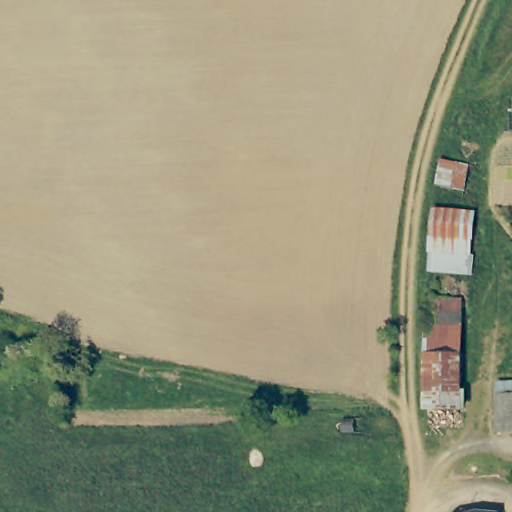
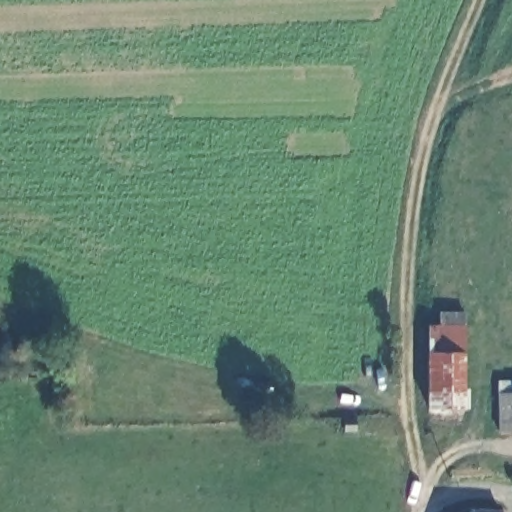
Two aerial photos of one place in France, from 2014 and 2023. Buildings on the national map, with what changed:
demolished [(470,275),(428,272),(431,209),(473,211),(470,275)]
unchanged [(428,299),(463,299),(463,427),(428,427),(428,299)]
unchanged [(491,399),(491,387),(512,387),(512,437),(493,437),(491,399)]
unchanged [(343,419),(355,419),(355,432),(343,432),(343,419)]
unchanged [(476,511),(500,512),(473,512),(476,511)]

